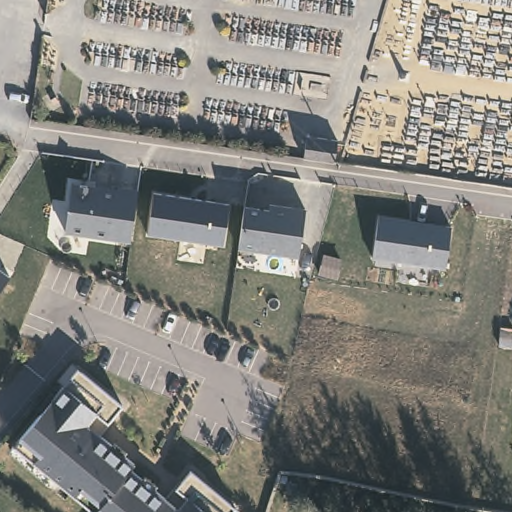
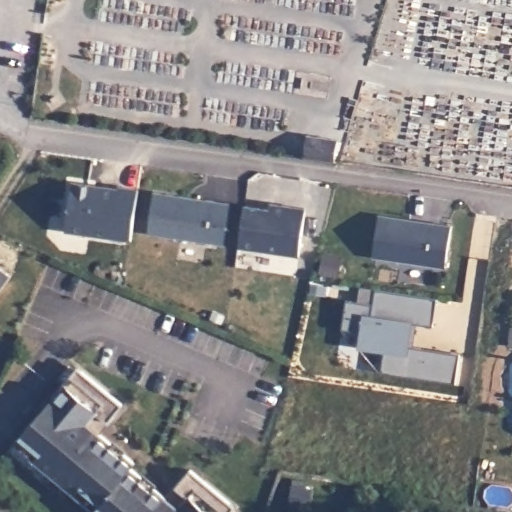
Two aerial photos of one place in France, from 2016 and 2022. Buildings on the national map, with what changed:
unchanged [(342,137),(341,163),(307,160),(308,135),(342,137)]
unchanged [(132,243),(66,234),(73,184),(120,189),(120,187),(140,190),(132,243)]
unchanged [(149,236),(155,193),(230,204),(223,246),(149,236)]
unchanged [(299,258),(240,251),(246,206),(271,208),(272,205),(306,209),(299,258)]
unchanged [(447,268),(373,257),(380,216),(451,227),(447,268)]
unchanged [(0,269),(11,277),(0,291),(0,269)]
new [(387,352),(358,347),(361,330),(342,329),(346,299),(358,300),(361,286),(439,298),(435,326),(418,324),(415,346),(461,353),(457,382),(382,371),(387,352)]
unchanged [(104,512),(98,507),(102,501),(83,486),(77,493),(16,443),(43,409),(46,412),(59,397),(56,394),(80,365),(124,402),(110,419),(102,412),(92,424),(137,460),(132,465),(177,503),(187,491),(179,484),(192,467),(237,503),(230,512),(104,512)]

